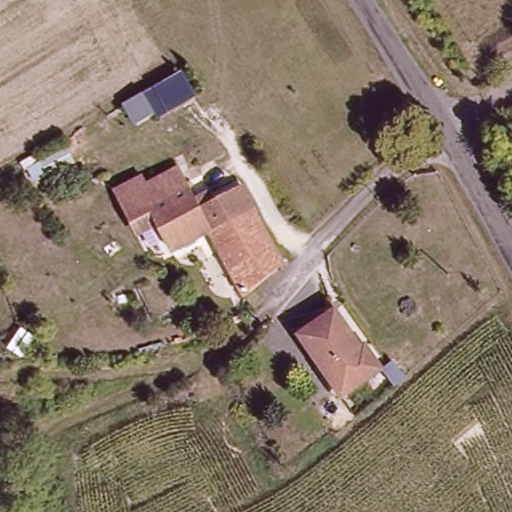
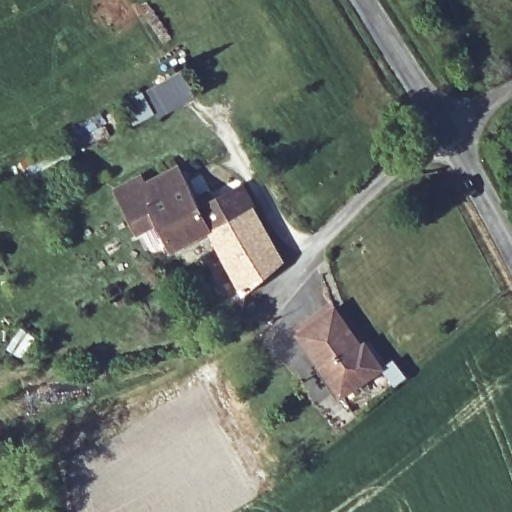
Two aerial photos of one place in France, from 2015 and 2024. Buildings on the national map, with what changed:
unchanged [(183,71),(196,96),(157,117),(155,112),(135,125),(122,104),(183,71)]
unchanged [(142,182),(177,165),(197,207),(240,187),(250,209),(247,211),(277,265),(239,297),(210,237),(175,252),(155,217),(132,229),(112,188),(140,175),(142,182)]
unchanged [(333,309),(375,369),(340,394),(299,333),(333,309)]

